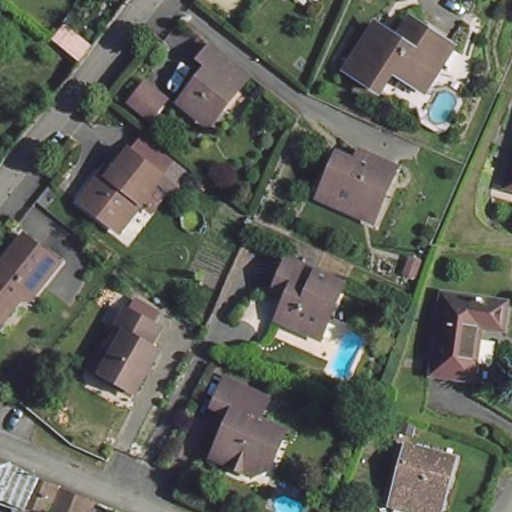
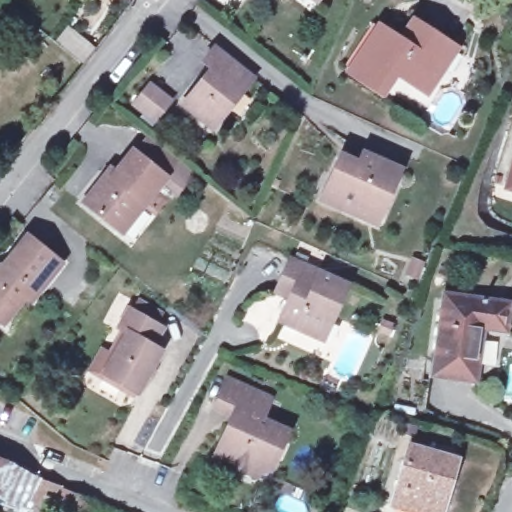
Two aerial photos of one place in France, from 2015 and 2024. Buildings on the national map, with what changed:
unchanged [(307,0),(313,0),(310,3),(307,0)]
unchanged [(446,49),(423,94),(391,78),(380,98),(345,79),(368,32),(391,45),(402,25),(446,49)]
unchanged [(203,115),(183,97),(212,62),(203,54),(215,40),(228,51),(243,64),(253,72),(243,85),(219,113),(211,121),(203,115)]
unchanged [(175,99),(160,116),(140,99),(155,81),(175,99)]
unchanged [(130,208),(107,235),(72,204),(99,173),(105,177),(109,175),(125,157),(138,143),(159,161),(170,170),(157,185),(135,211),(130,208)]
unchanged [(343,206),(326,198),(346,157),(363,165),(370,152),(388,162),(402,169),(398,177),(381,214),(377,223),(343,206)]
unchanged [(512,164),(512,184),(507,183),(512,164)]
unchanged [(0,323),(0,261),(5,263),(27,237),(60,264),(30,298),(25,294),(12,310),(0,323)]
unchanged [(417,262),(411,277),(402,273),(408,259),(417,262)]
unchanged [(317,337),(280,320),(292,294),(277,286),(290,260),(347,287),(329,324),(321,340),(317,337)]
unchanged [(505,297),(501,325),(478,321),(469,376),(428,367),(440,286),(505,297)]
unchanged [(164,332),(155,347),(163,353),(135,396),(105,375),(133,332),(124,326),(133,311),(164,332)]
unchanged [(270,458),(253,451),(246,467),(213,451),(233,410),(215,400),(228,372),(265,390),(272,394),(263,412),(286,422),(270,458)]
unchanged [(440,512),(431,512),(393,502),(410,445),(454,457),(440,512)]
unchanged [(8,466),(0,486),(0,463),(8,466)]
unchanged [(95,500),(89,512),(59,512),(23,497),(21,501),(0,491),(0,486),(8,466),(25,473),(95,500)]

